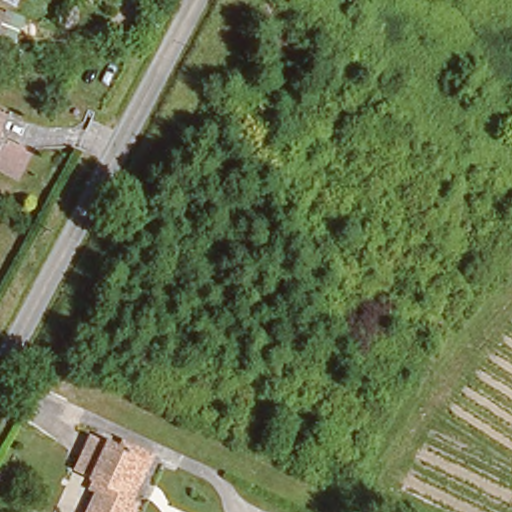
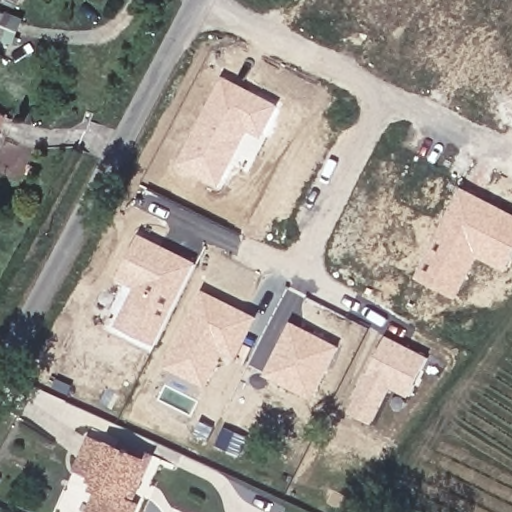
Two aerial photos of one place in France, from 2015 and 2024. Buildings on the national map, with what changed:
unchanged [(4,1),(2,0),(4,0),(4,1)]
new [(263,138),(251,131),(222,187),(179,165),(226,75),(281,105),(263,138)]
unchanged [(0,131),(0,107),(10,112),(0,131)]
new [(480,256),(459,298),(417,277),(462,186),(512,212),(512,265),(509,271),(480,256)]
new [(159,345),(119,325),(138,288),(120,278),(145,233),(201,261),(159,345)]
new [(239,359),(226,352),(210,386),(170,368),(205,288),(261,315),(239,359)]
new [(316,399),(266,376),(293,320),(342,345),(316,399)]
new [(411,396),(393,387),(375,423),(350,412),(389,335),(431,356),(411,396)]
unchanged [(77,512),(95,480),(66,465),(71,455),(85,431),(102,440),(114,445),(116,440),(140,453),(118,493),(126,500),(119,512),(77,512)]

